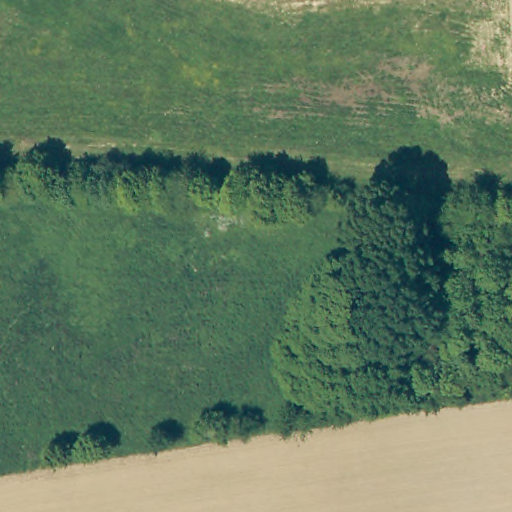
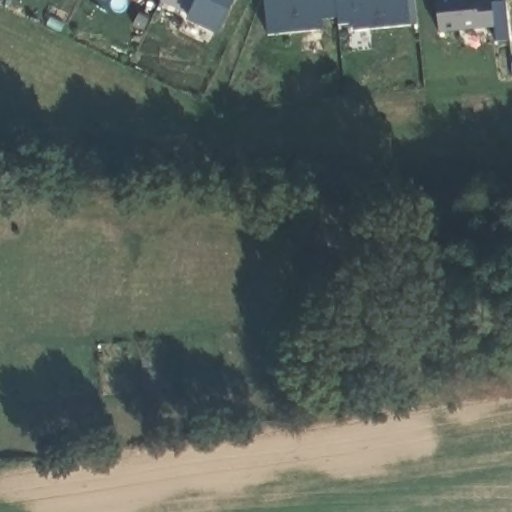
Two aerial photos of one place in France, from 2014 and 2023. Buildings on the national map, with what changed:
new [(232,0),(214,35),(185,21),(187,18),(157,3),(159,0),(232,0)]
new [(355,30),(353,23),(338,24),(337,17),(322,19),(325,29),(268,35),(263,0),(334,0),(407,0),(409,25),(355,30)]
new [(437,32),(434,0),(491,0),(494,28),(437,32)]

